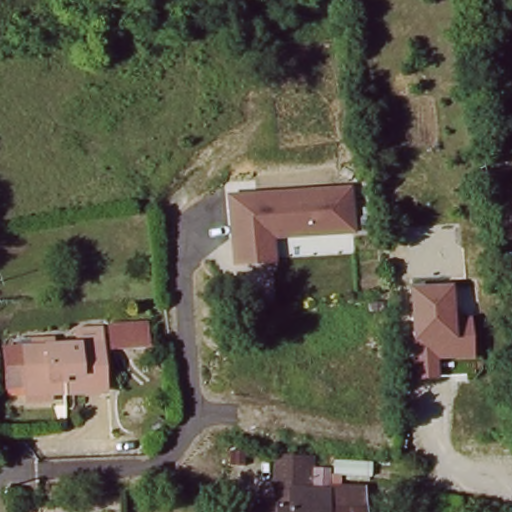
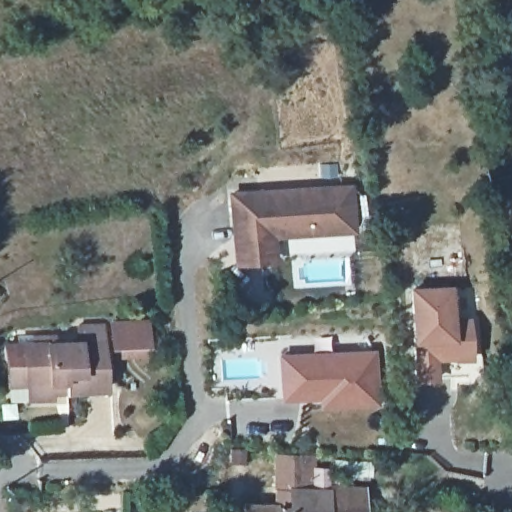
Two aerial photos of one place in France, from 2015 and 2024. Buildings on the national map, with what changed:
new [(492,217),(488,186),(500,184),(512,186),(512,226),(502,227),(499,216),(492,217)]
unchanged [(361,186),(364,234),(279,241),(280,263),(236,265),(232,192),(361,186)]
unchanged [(454,282),(455,317),(473,317),(474,361),(439,363),(439,382),(412,382),(412,343),(411,283),(454,282)]
new [(142,317),(145,341),(110,346),(107,322),(142,317)]
unchanged [(29,387),(24,347),(104,338),(111,387),(68,393),(30,397),(29,387)]
new [(322,395),(284,398),(281,358),(373,350),(377,398),(343,402),(323,403),(322,395)]
unchanged [(241,502),(259,502),(259,492),(274,494),(274,488),(274,452),(316,452),(316,466),(332,466),(331,481),(367,482),(366,503),(388,502),(388,512),(241,512),(241,502)]

